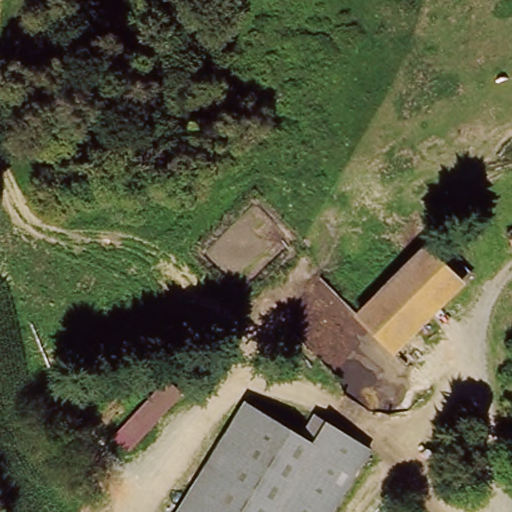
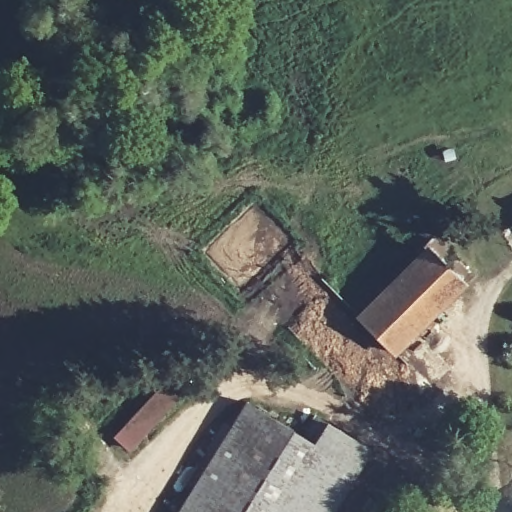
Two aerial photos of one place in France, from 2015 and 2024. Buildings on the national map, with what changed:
unchanged [(358,320),(425,253),(463,289),(395,357),(358,320)]
unchanged [(166,379),(183,394),(129,453),(113,437),(166,379)]
unchanged [(247,406),(303,440),(315,420),(369,453),(333,512),(181,512),(247,406)]

